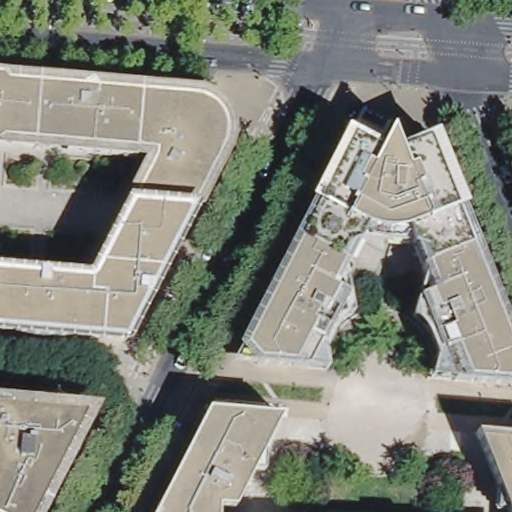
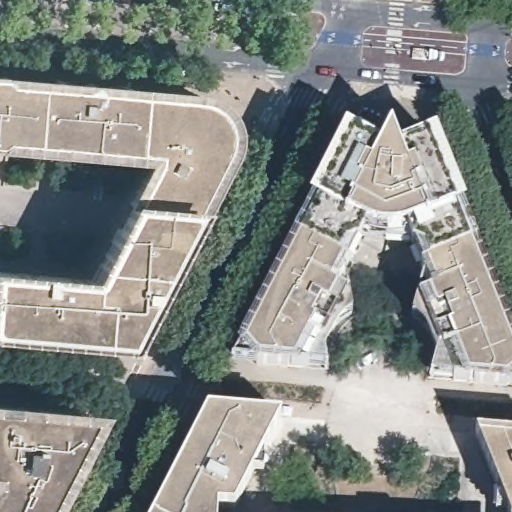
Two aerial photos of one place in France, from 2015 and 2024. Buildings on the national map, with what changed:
unchanged [(31,146),(28,145),(18,143),(10,139),(5,136),(0,135),(0,76),(199,94),(206,96),(213,101),(217,105),(219,109),(225,119),(226,127),(226,135),(223,146),(192,206),(129,200),(155,150),(57,140),(55,142),(49,144),(41,146),(31,146)]
unchanged [(458,383),(439,382),(438,382),(447,360),(438,335),(415,326),(421,301),(436,296),(421,255),(430,250),(418,244),(415,236),(420,226),(407,229),(395,229),(383,229),(374,227),(367,224),(370,234),(367,242),(355,246),(362,250),(341,291),(354,297),(356,318),(337,323),(325,349),(330,372),(310,370),(258,366),(238,363),(248,345),(313,220),(359,132),(361,129),(367,132),(389,143),(396,132),(402,147),(434,134),(483,257),(512,330),(512,388),(458,383)]
unchanged [(129,200),(192,206),(180,228),(113,234),(129,200)]
unchanged [(182,229),(161,267),(155,267),(153,283),(125,336),(0,325),(0,268),(91,277),(113,234),(180,228),(182,229)]
unchanged [(219,502),(218,512),(151,512),(208,401),(238,403),(281,408),(262,448),(233,502),(219,502)]
unchanged [(38,512),(0,512),(0,410),(88,418),(38,512)]
unchanged [(512,431),(512,512),(480,428),(512,431)]

